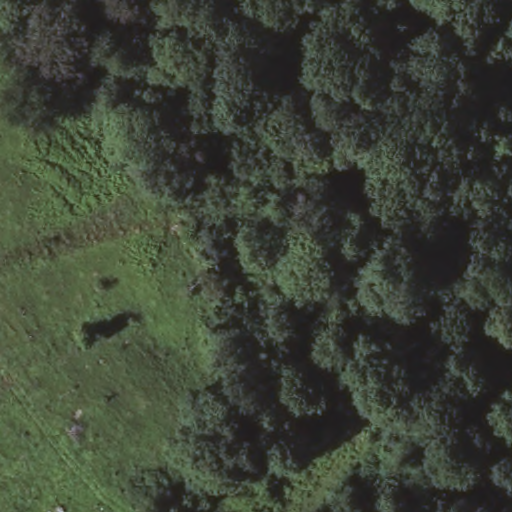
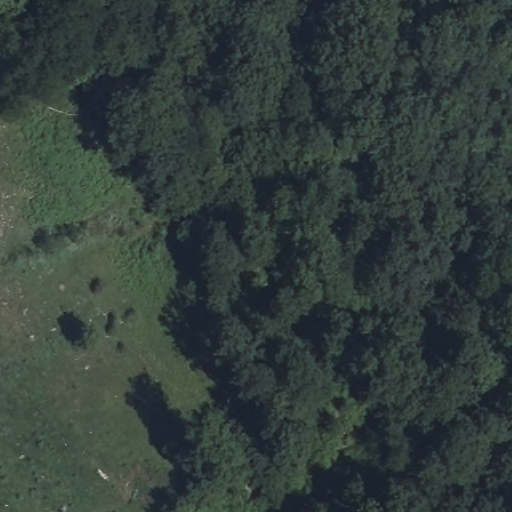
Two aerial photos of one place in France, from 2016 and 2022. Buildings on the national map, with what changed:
unchanged [(124,512),(119,512),(121,509),(124,512)]

